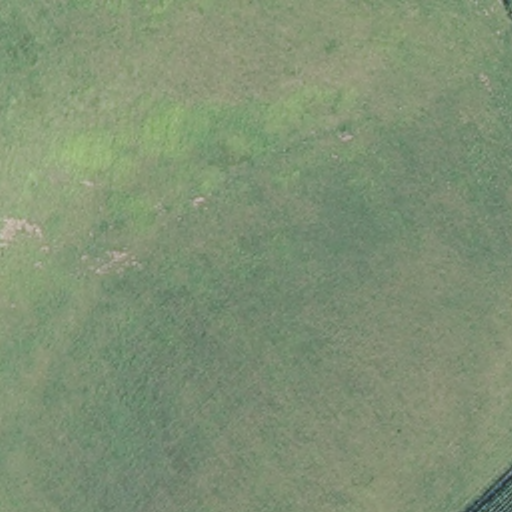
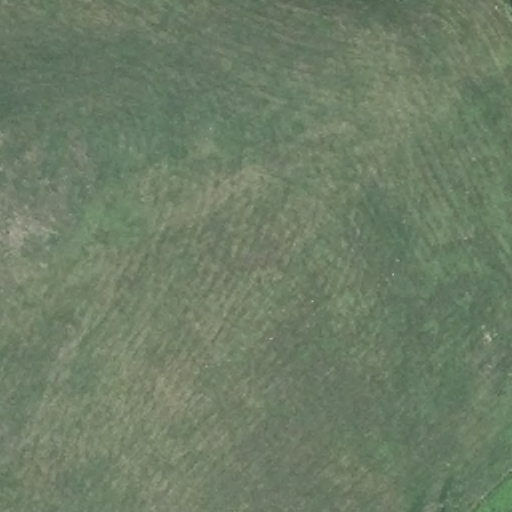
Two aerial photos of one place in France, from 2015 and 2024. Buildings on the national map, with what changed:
[]

